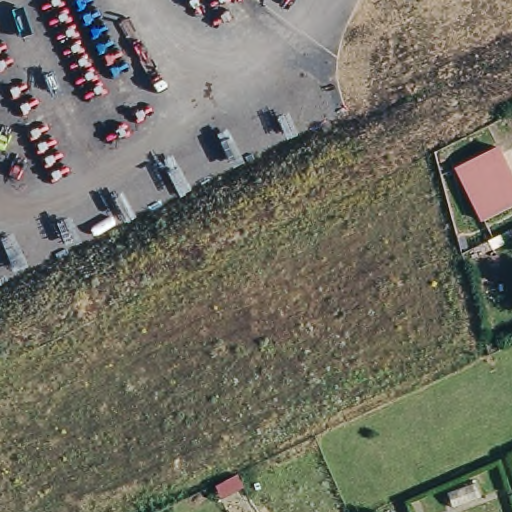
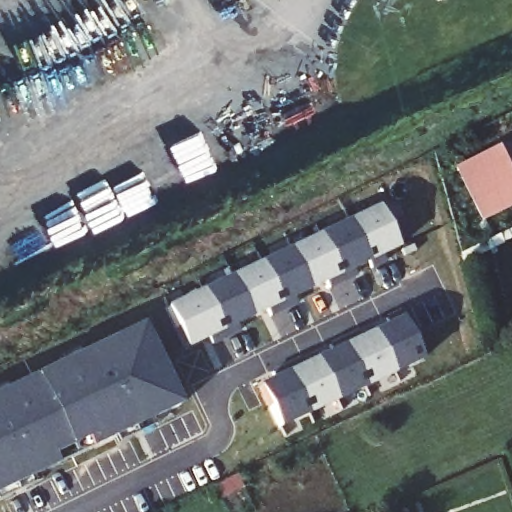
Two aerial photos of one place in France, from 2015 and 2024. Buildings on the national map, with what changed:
unchanged [(452,165),(467,159),(502,143),(512,168),(512,203),(480,220),(452,165)]
new [(165,308),(377,207),(399,249),(187,352),(165,308)]
new [(257,388),(401,318),(423,361),(279,431),(257,388)]
new [(181,407),(0,494),(0,393),(141,325),(181,407)]

